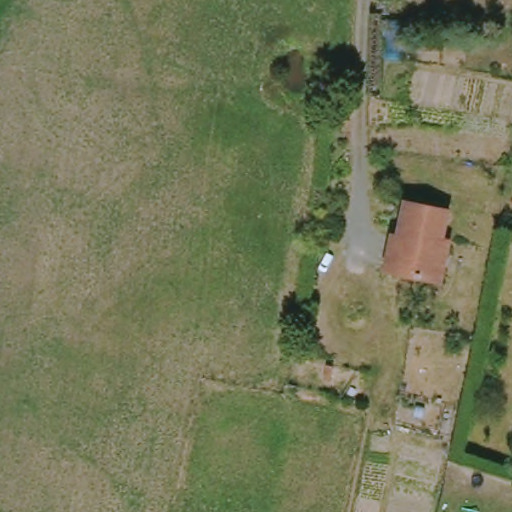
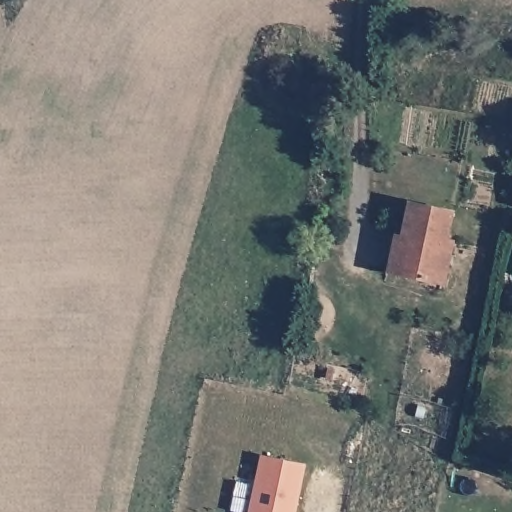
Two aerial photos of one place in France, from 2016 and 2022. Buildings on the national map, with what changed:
unchanged [(511,200),(512,194),(512,200),(511,200)]
unchanged [(453,209),(447,241),(454,243),(447,281),(389,270),(395,232),(405,233),(411,201),(453,209)]
new [(305,463),(295,512),(248,512),(260,455),(305,463)]

